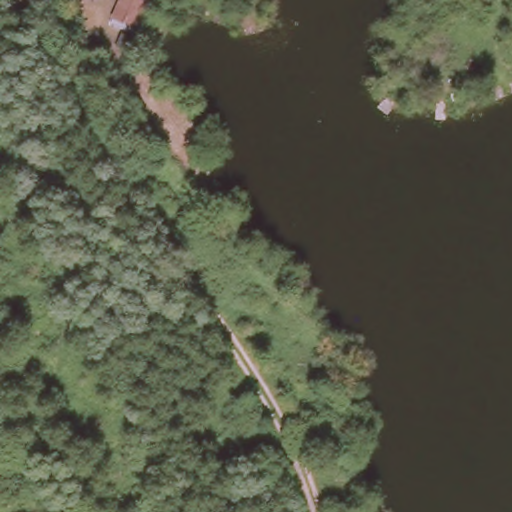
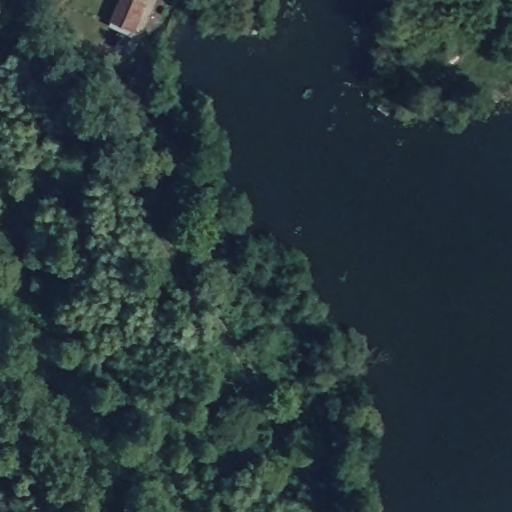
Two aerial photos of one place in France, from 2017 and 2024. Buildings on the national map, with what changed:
unchanged [(119,0),(136,0),(147,3),(135,33),(109,23),(119,0)]

